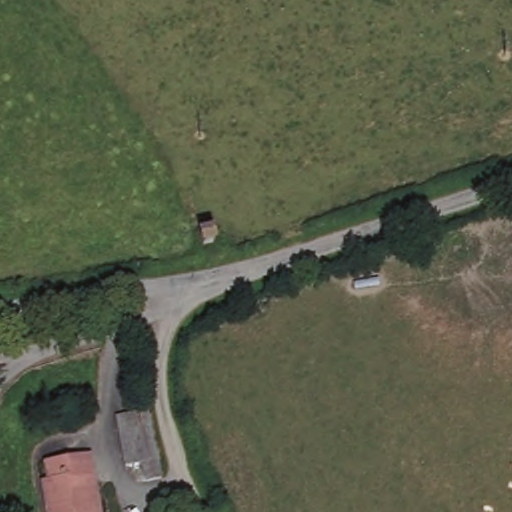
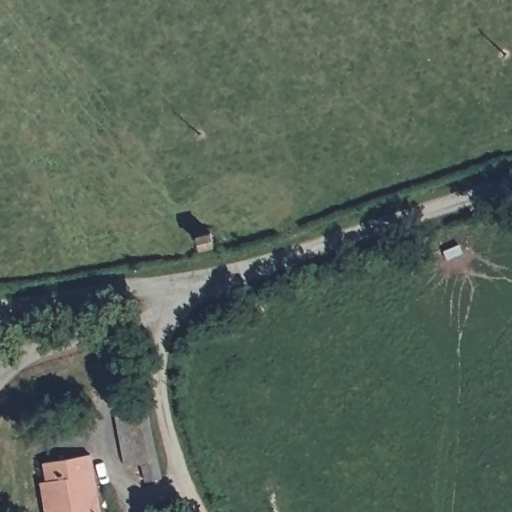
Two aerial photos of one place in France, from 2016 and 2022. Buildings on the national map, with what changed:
unchanged [(0,352),(0,337),(8,336),(9,350),(0,352)]
unchanged [(120,424),(137,419),(139,419),(151,416),(161,464),(148,466),(130,470),(120,424)]
unchanged [(45,464),(92,453),(106,512),(52,512),(57,510),(45,464)]

